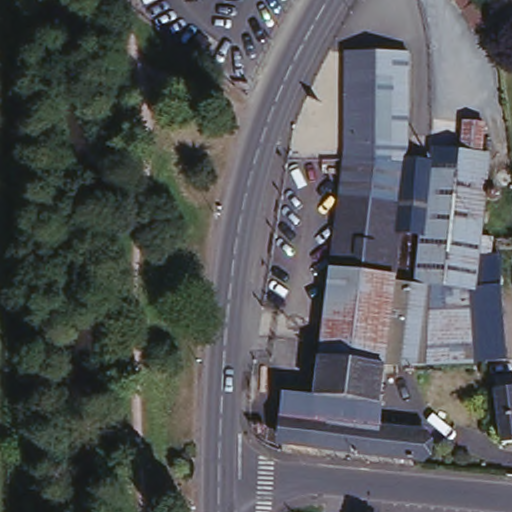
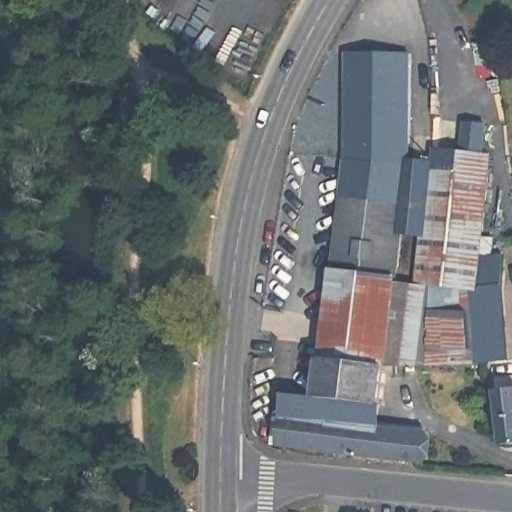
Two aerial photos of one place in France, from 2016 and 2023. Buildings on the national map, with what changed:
unchanged [(414,54),(412,157),(435,160),(447,160),(448,145),(460,146),(463,120),(487,123),(484,154),(495,156),(482,284),(505,286),(509,364),(388,362),(384,416),(441,424),(434,467),(276,451),(283,392),(315,398),(329,268),(345,153),(345,51),(414,54)]
unchanged [(500,387),(502,387),(500,376),(512,375),(512,440),(507,441),(500,387)]

